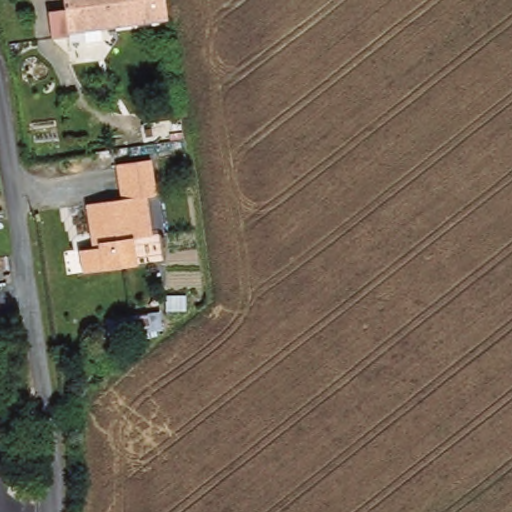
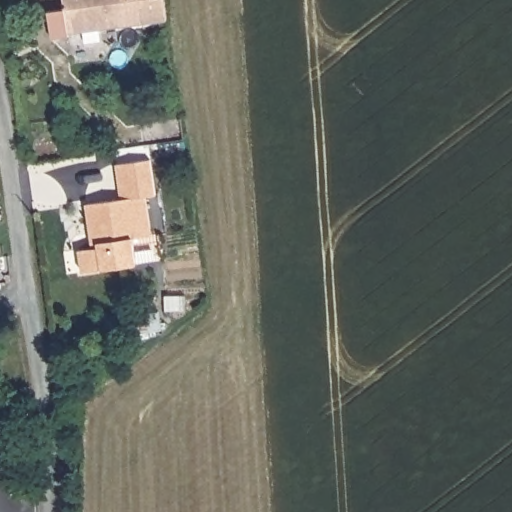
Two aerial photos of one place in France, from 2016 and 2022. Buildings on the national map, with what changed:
unchanged [(97,31),(98,44),(85,45),(83,32),(67,34),(64,37),(49,39),(45,13),(61,10),(60,0),(161,0),(164,23),(97,31)]
unchanged [(119,164),(156,159),(160,194),(144,195),(125,199),(119,164)]
unchanged [(94,249),(92,244),(81,205),(125,199),(144,195),(149,241),(128,240),(131,269),(98,269),(76,274),(73,251),(94,249)]

